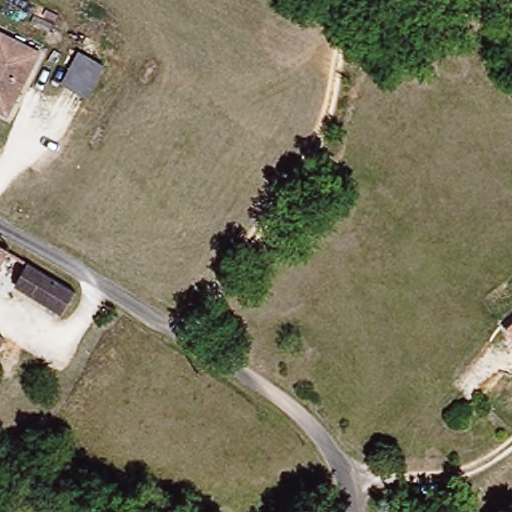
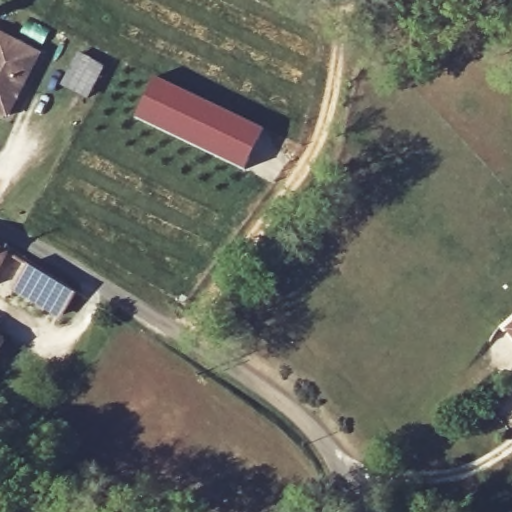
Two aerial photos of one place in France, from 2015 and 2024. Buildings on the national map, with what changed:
unchanged [(1,112),(0,112),(0,31),(35,51),(1,112)]
unchanged [(87,40),(100,49),(94,62),(112,73),(93,105),(61,89),(87,40)]
new [(244,169),(137,116),(155,75),(265,129),(244,169)]
unchanged [(10,256),(0,273),(0,251),(10,256)]
unchanged [(20,292),(31,274),(76,300),(63,318),(20,292)]
unchanged [(512,331),(512,341),(507,335),(512,331)]
unchanged [(0,356),(0,341),(7,345),(0,356)]

